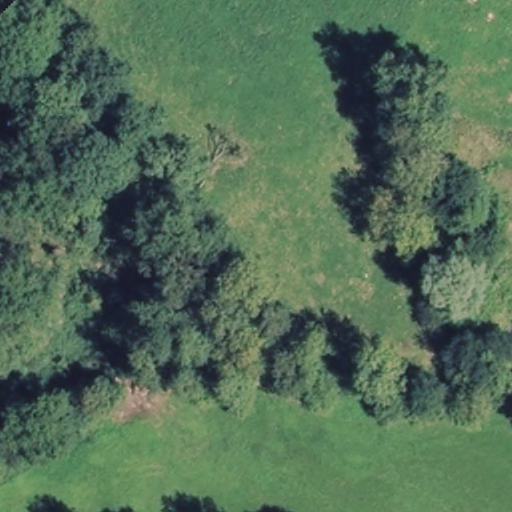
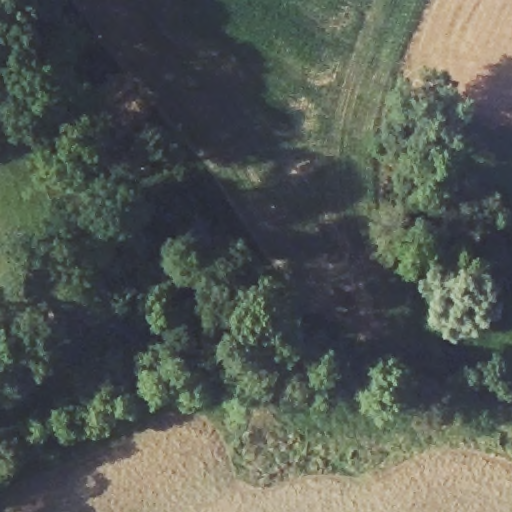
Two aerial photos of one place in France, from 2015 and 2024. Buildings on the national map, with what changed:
[]

